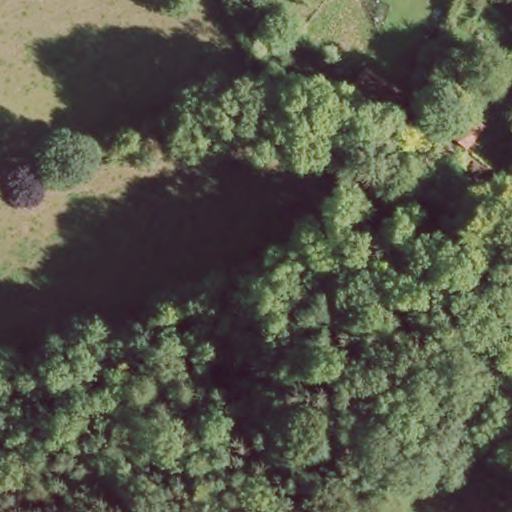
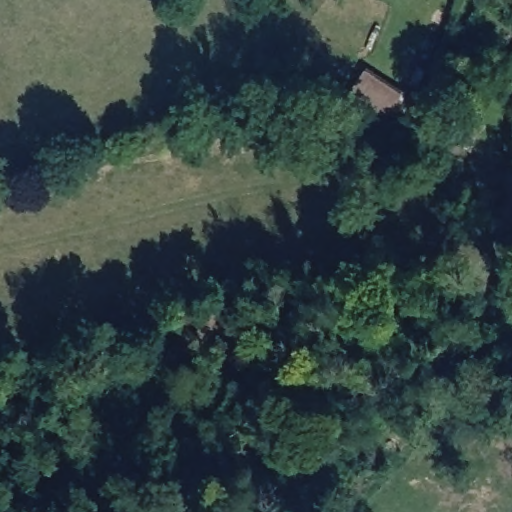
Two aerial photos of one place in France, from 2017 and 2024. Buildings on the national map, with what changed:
unchanged [(370,68),(403,89),(390,111),(355,89),(370,68)]

